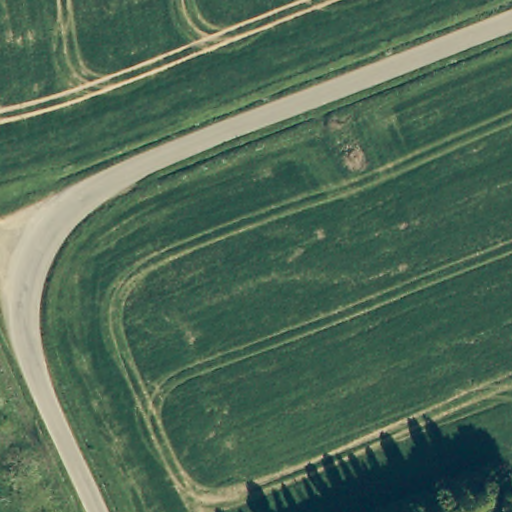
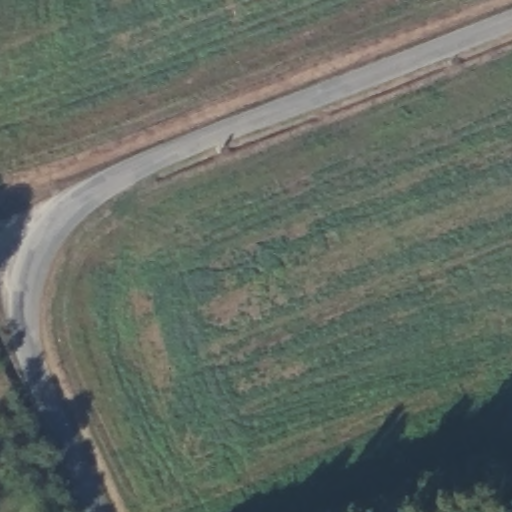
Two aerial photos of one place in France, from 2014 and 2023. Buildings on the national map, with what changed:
[]

